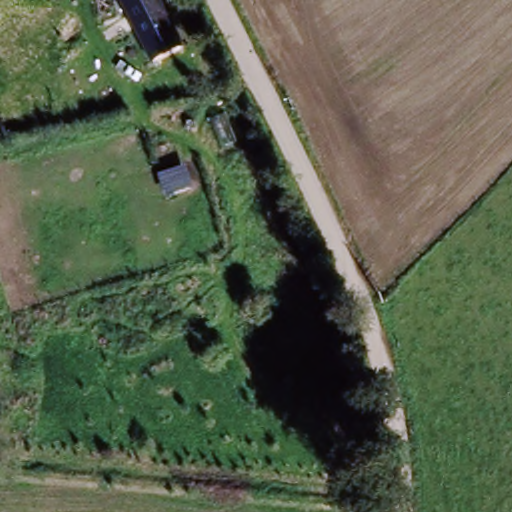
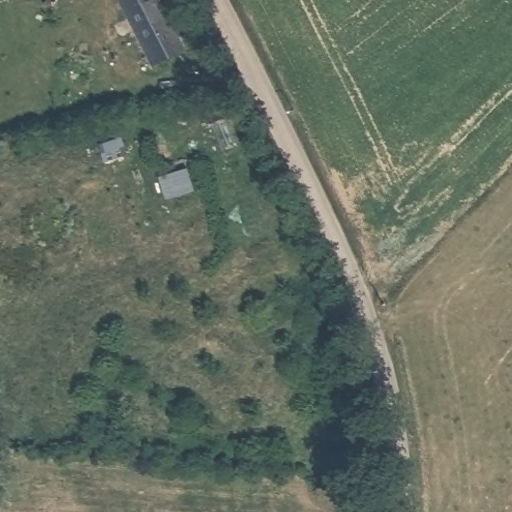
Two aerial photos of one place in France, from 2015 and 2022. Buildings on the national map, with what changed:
unchanged [(143,72),(109,0),(154,0),(180,53),(143,72)]

